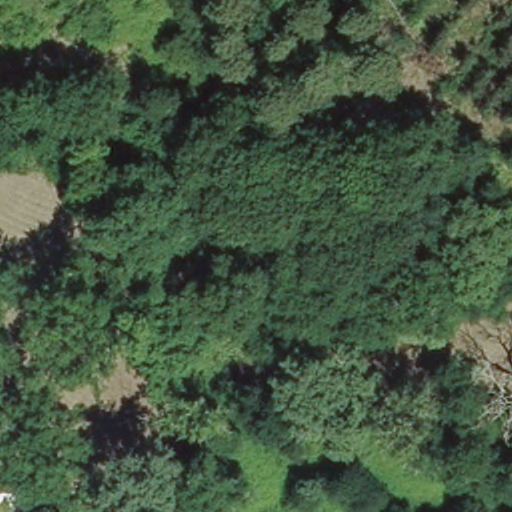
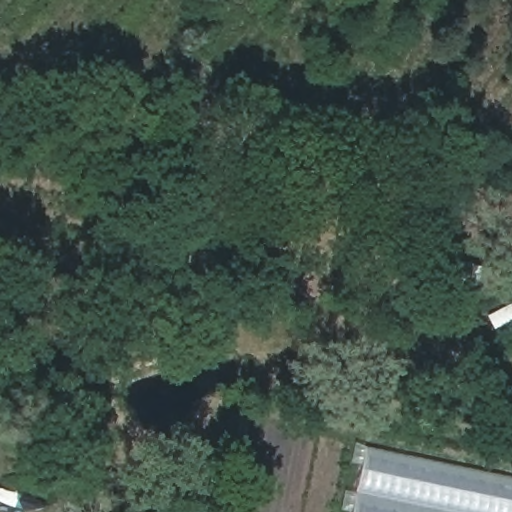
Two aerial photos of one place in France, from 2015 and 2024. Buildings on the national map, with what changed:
new [(512,478),(512,512),(351,512),(364,447),(512,478)]

